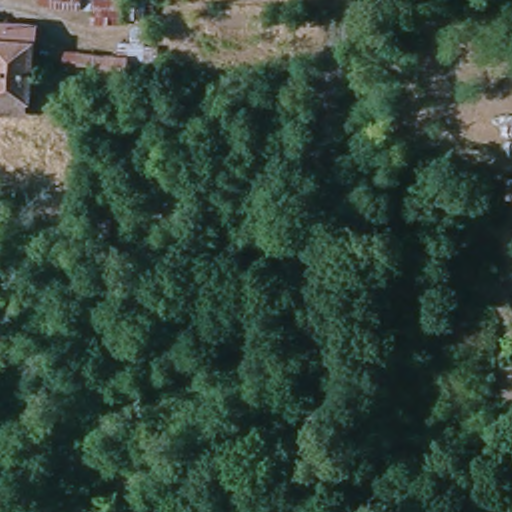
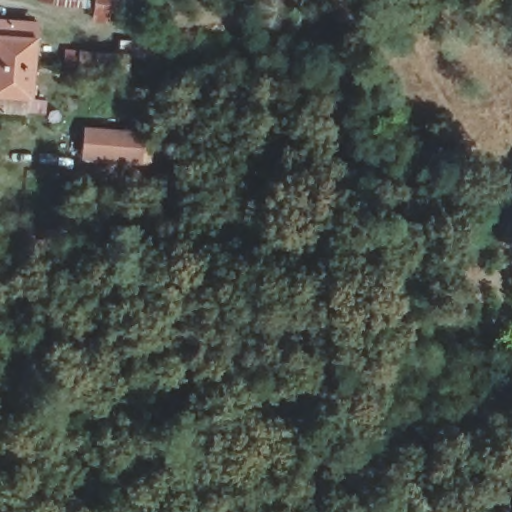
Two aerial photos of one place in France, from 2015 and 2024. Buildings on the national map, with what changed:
unchanged [(48,6),(49,0),(77,0),(76,7),(48,6)]
unchanged [(89,8),(90,0),(120,0),(120,10),(89,8)]
unchanged [(126,12),(127,0),(151,0),(150,14),(126,12)]
unchanged [(26,17),(26,29),(32,30),(29,64),(0,62),(0,16),(26,17)]
unchanged [(116,40),(127,40),(128,20),(145,20),(145,25),(149,25),(149,44),(155,45),(154,66),(142,66),(141,72),(128,71),(122,67),(71,64),(60,62),(61,49),(72,50),(116,52),(116,40)]
unchanged [(29,64),(27,92),(21,91),(19,105),(0,104),(0,62),(29,64)]
new [(148,131),(146,165),(82,160),(84,126),(148,131)]
unchanged [(512,219),(500,218),(504,165),(512,165),(512,219)]

